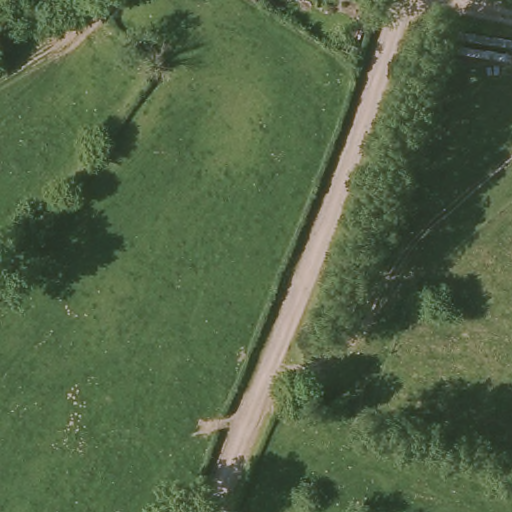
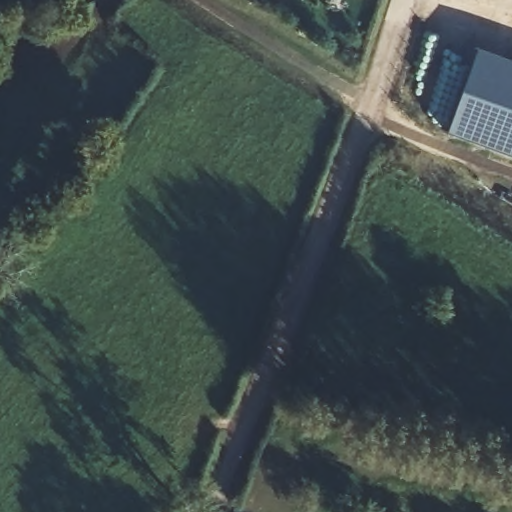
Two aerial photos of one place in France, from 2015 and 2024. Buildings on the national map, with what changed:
new [(512,64),(512,157),(449,134),(477,50),(512,64)]

